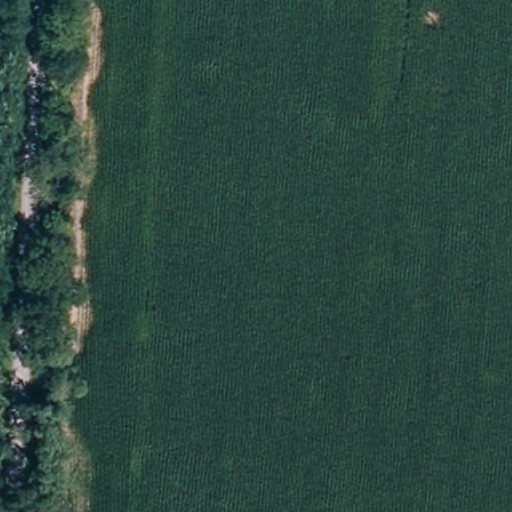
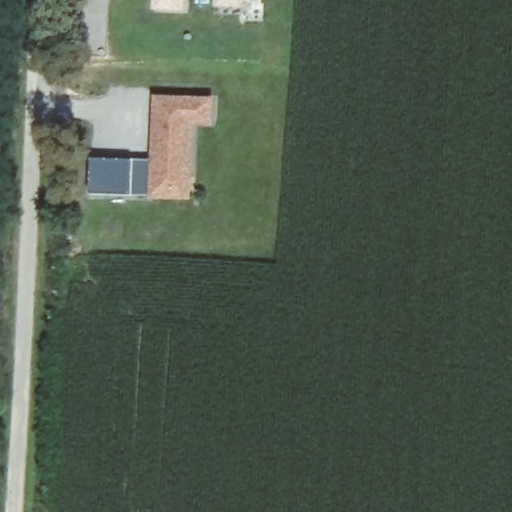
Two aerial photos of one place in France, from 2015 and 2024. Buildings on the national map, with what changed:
new [(188,11),(155,11),(156,0),(188,0),(188,11)]
new [(247,8),(218,7),(219,0),(248,0),(247,8)]
new [(215,98),(214,125),(195,125),(194,200),(151,198),(155,96),(215,98)]
new [(136,162),(134,197),(92,196),(94,158),(136,162)]

